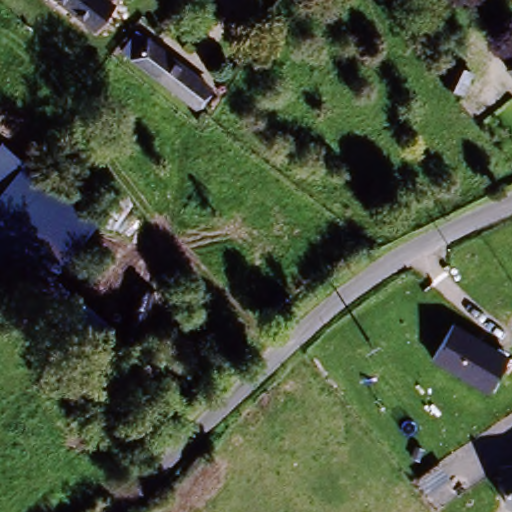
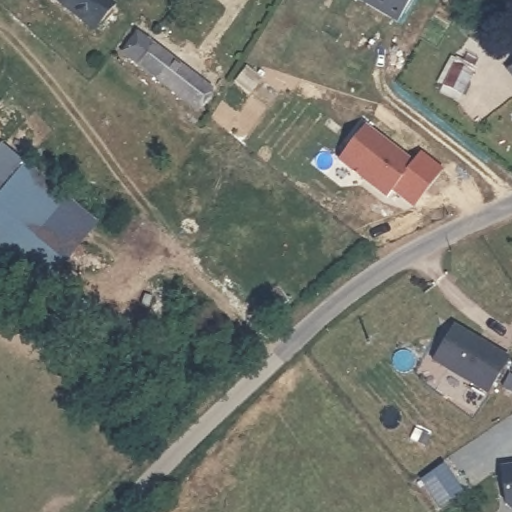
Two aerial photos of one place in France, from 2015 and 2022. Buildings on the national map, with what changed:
unchanged [(89,26),(85,31),(47,0),(100,0),(106,5),(120,15),(103,37),(89,26)]
new [(397,23),(356,0),(411,0),(397,23)]
unchanged [(215,94),(196,116),(122,57),(140,34),(215,94)]
unchanged [(457,100),(428,85),(441,62),(470,76),(457,100)]
unchanged [(507,73),(512,67),(512,78),(507,73)]
unchanged [(0,146),(17,126),(39,143),(112,205),(50,278),(0,236),(0,146)]
new [(413,162),(422,153),(443,171),(413,209),(391,192),(386,199),(337,161),(366,126),(413,162)]
unchanged [(431,362),(452,326),(508,359),(487,395),(431,362)]
unchanged [(510,512),(504,507),(499,470),(512,467),(512,512),(510,512)]

